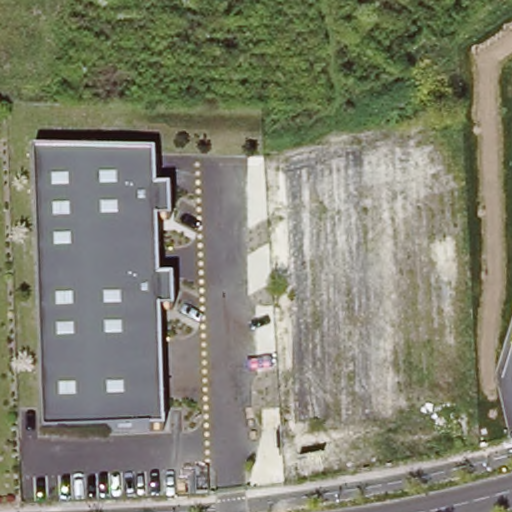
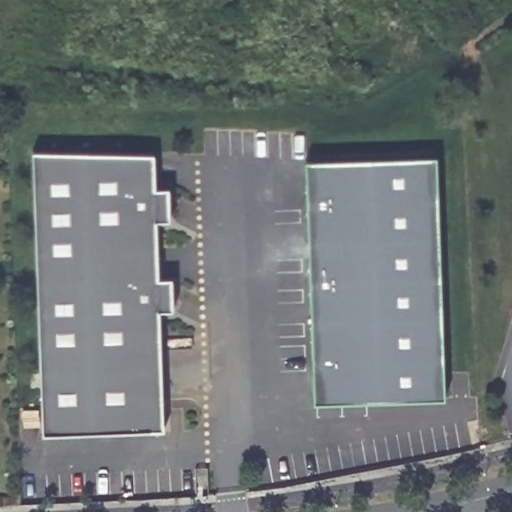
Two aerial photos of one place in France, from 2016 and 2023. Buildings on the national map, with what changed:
unchanged [(33,150),(155,152),(156,186),(170,187),(171,217),(156,218),(157,275),(173,276),(173,309),(159,310),(163,426),(42,431),(33,150)]
new [(433,160),(442,403),(312,407),(301,164),(433,160)]

